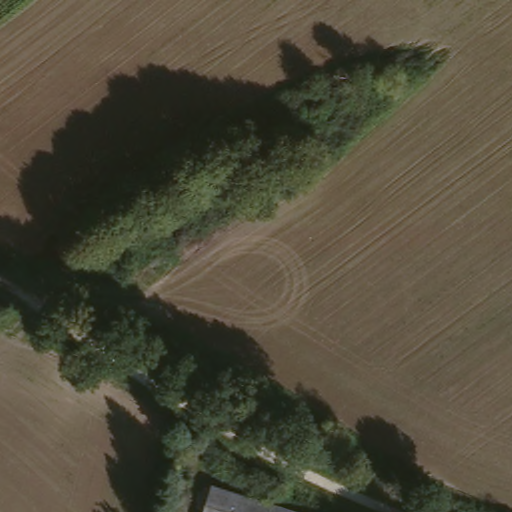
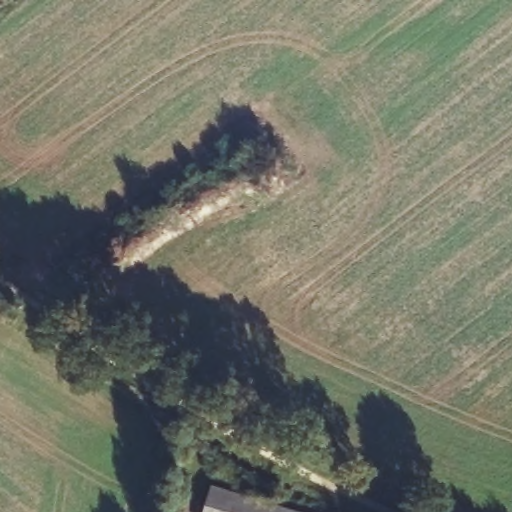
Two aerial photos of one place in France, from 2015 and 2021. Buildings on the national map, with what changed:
unchanged [(297,512),(215,512),(222,487),(297,512)]

